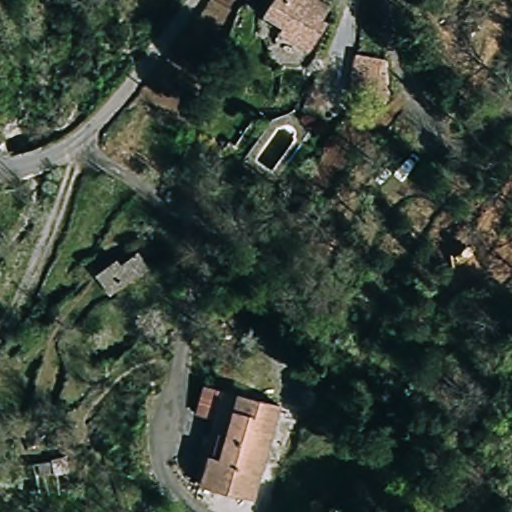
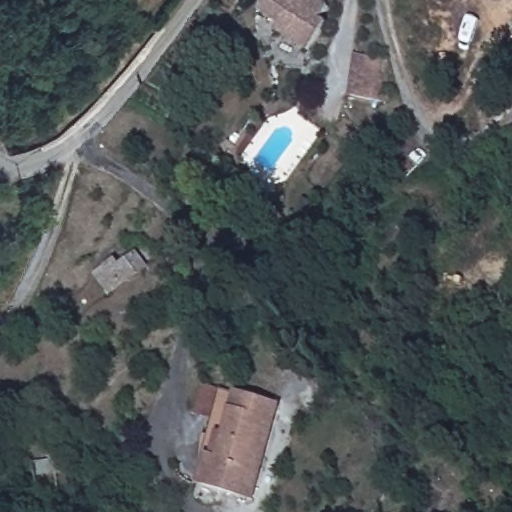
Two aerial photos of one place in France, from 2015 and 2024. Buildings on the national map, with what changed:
unchanged [(325,0),(335,8),(309,50),(265,18),(275,0),(325,0)]
unchanged [(385,60),(383,103),(349,98),(356,54),(385,60)]
unchanged [(100,279),(120,261),(123,264),(137,250),(149,263),(135,277),(116,295),(100,279)]
unchanged [(198,416),(205,383),(223,387),(214,420),(198,416)]
unchanged [(251,500),(198,485),(208,452),(220,454),(236,389),(282,403),(251,500)]
unchanged [(64,456),(67,473),(39,479),(35,462),(64,456)]

